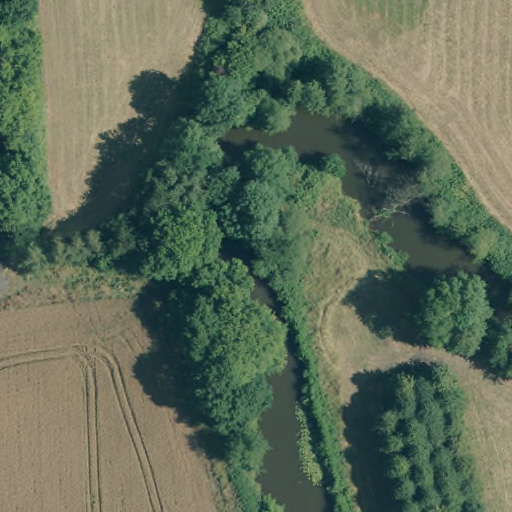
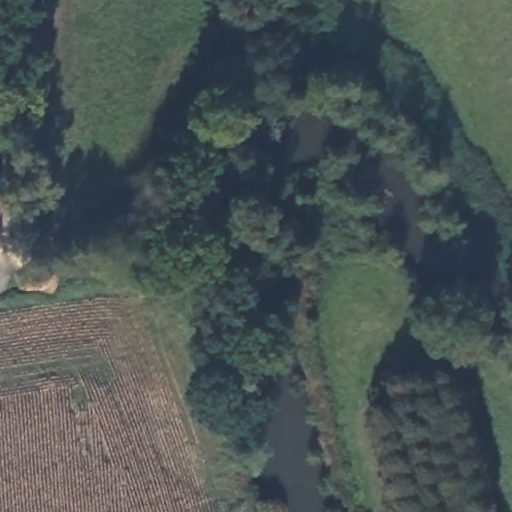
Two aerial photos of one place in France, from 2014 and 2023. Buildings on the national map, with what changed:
[]

